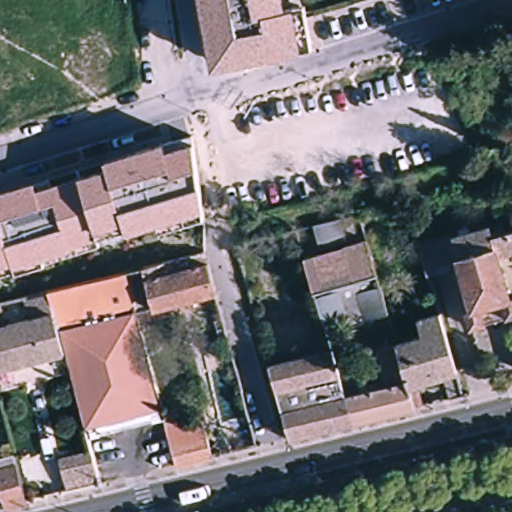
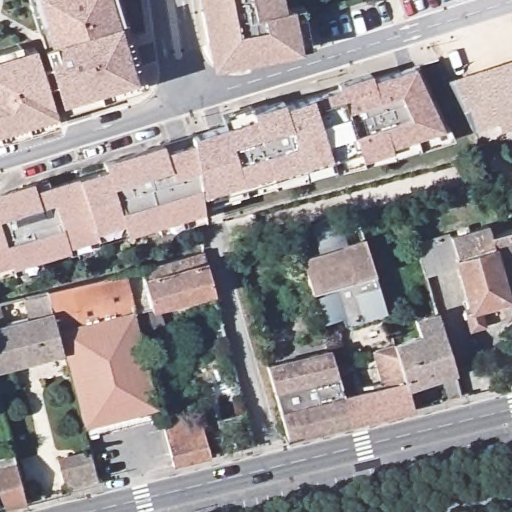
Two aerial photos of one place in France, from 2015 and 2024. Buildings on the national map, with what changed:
new [(55,115),(0,132),(0,56),(33,47),(34,50),(43,48),(30,0),(116,0),(144,84),(55,115)]
unchanged [(224,64),(223,64),(222,64),(221,64),(221,63),(220,63),(219,63),(218,63),(218,62),(217,62),(216,62),(216,61),(215,61),(214,60),(213,60),(213,59),(213,58),(212,58),(211,58),(211,57),(211,56),(210,56),(210,55),(209,55),(209,54),(208,54),(201,14),(203,13),(201,0),(279,0),(281,11),(289,10),(298,8),(301,19),(309,43),(296,47),(255,55),(256,59),(228,64),(226,64),(224,64)]
new [(501,132),(498,124),(473,131),(451,82),(512,62),(512,128),(501,132)]
new [(274,187),(271,184),(203,208),(201,199),(201,190),(193,139),(191,134),(253,117),(251,110),(282,101),(283,105),(312,97),(338,88),(336,84),(371,74),(373,78),(414,68),(419,66),(452,139),(274,187)]
new [(509,148),(512,147),(512,159),(509,148)]
unchanged [(392,226),(386,209),(409,204),(414,220),(392,226)]
unchanged [(461,303),(464,301),(457,277),(454,266),(453,263),(449,249),(452,245),(449,234),(485,222),(490,220),(491,221),(493,229),(512,223),(512,290),(512,306),(501,310),(496,292),(477,298),(482,315),(466,320),(461,303)]
unchanged [(357,319),(320,328),(301,260),(318,255),(313,231),(338,225),(344,249),(364,244),(384,317),(359,323),(357,319)]
unchanged [(447,227),(448,232),(449,234),(452,245),(449,249),(453,263),(425,271),(415,236),(447,227)]
unchanged [(279,249),(240,259),(236,245),(275,236),(279,249)]
unchanged [(141,268),(205,252),(214,289),(151,306),(141,268)]
unchanged [(64,369),(44,291),(123,272),(156,408),(79,426),(64,369)]
unchanged [(0,321),(26,314),(22,296),(44,291),(64,369),(0,385),(0,321)]
unchanged [(468,398),(460,400),(446,404),(439,381),(404,390),(393,349),(419,341),(415,324),(436,318),(458,391),(466,389),(468,398)]
unchanged [(348,428),(336,384),(378,374),(373,355),(393,349),(404,390),(410,412),(348,428)]
unchanged [(336,384),(348,428),(285,443),(266,373),(328,356),(336,384)]
unchanged [(201,426),(208,456),(171,466),(163,435),(201,426)]
unchanged [(94,479),(63,486),(56,455),(86,447),(94,479)]
unchanged [(3,511),(0,501),(0,459),(9,457),(23,506),(3,511)]

